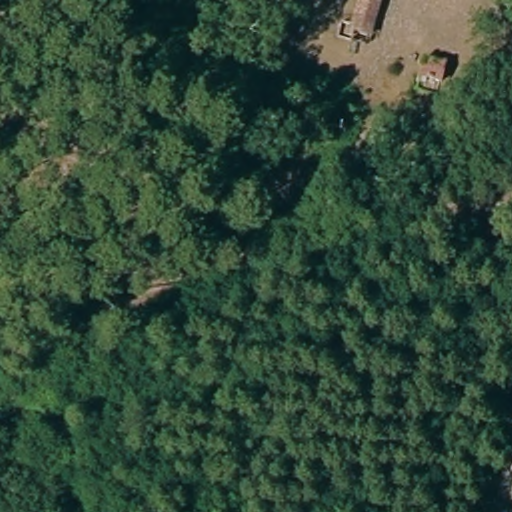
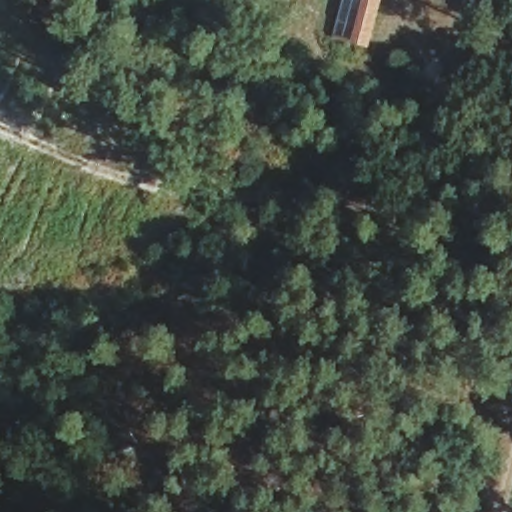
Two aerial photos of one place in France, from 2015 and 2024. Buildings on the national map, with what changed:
unchanged [(346,18),(361,22),(366,0),(383,0),(370,46),(341,39),(346,18)]
unchanged [(416,105),(425,69),(443,75),(434,109),(416,105)]

